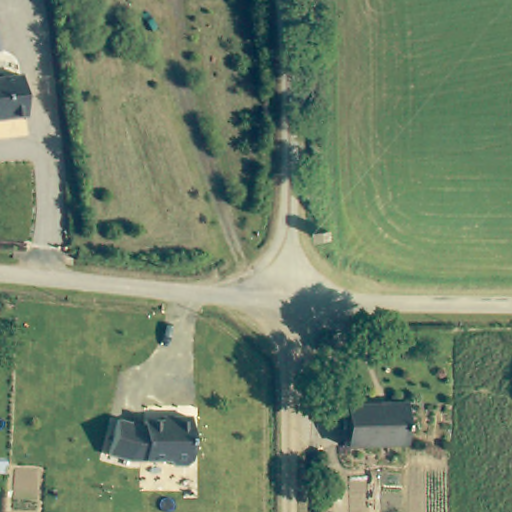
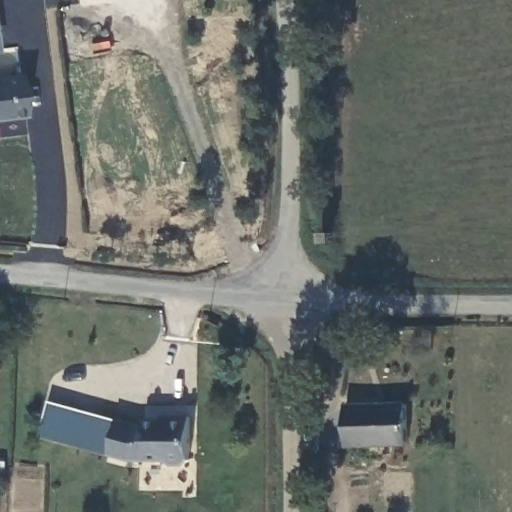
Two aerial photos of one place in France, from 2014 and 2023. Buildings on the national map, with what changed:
unchanged [(20,79),(24,119),(6,121),(6,119),(0,120),(0,81),(20,79)]
new [(109,455),(39,436),(48,402),(117,422),(109,455)]
unchanged [(347,448),(346,407),(408,406),(408,446),(347,448)]
unchanged [(189,461),(184,466),(170,466),(165,461),(129,461),(109,455),(117,422),(138,428),(142,428),(142,423),(169,423),(169,419),(189,419),(189,461)]

